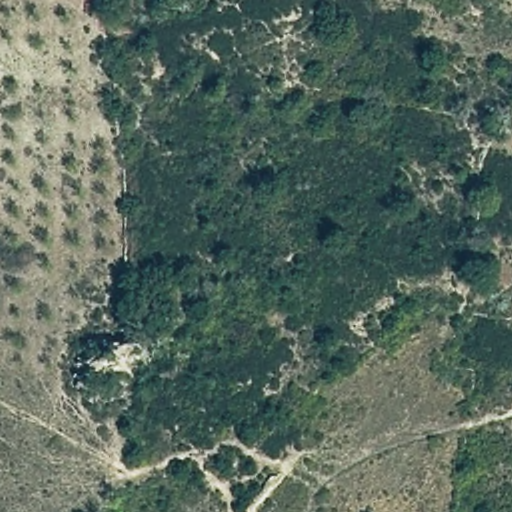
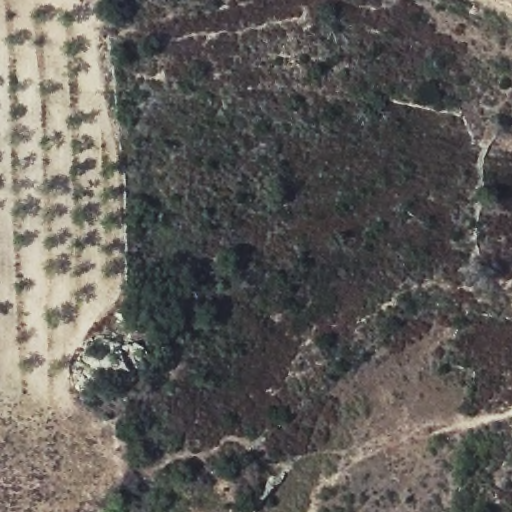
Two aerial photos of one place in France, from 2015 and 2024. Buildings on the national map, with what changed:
[]

